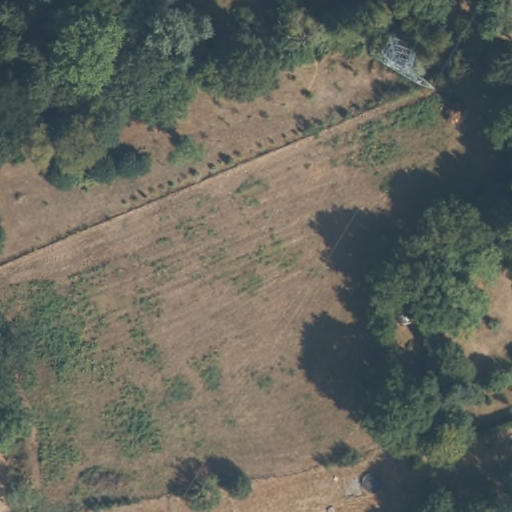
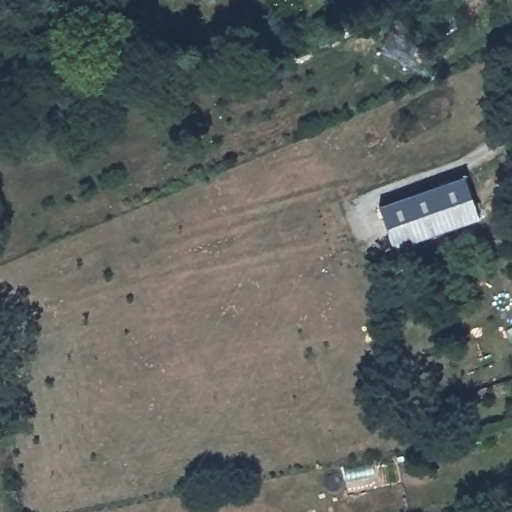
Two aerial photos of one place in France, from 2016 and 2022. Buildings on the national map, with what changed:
new [(480,220),(395,251),(380,205),(463,175),(480,220)]

